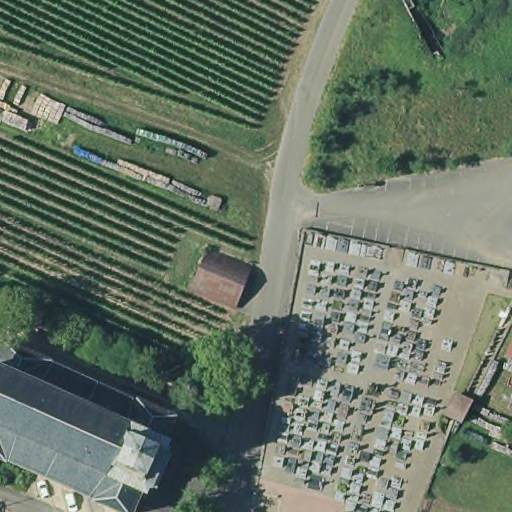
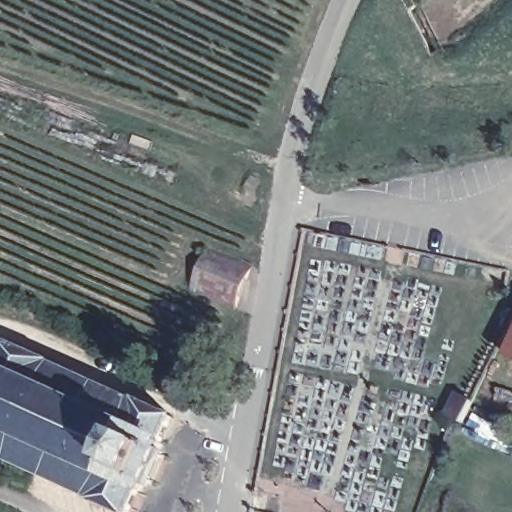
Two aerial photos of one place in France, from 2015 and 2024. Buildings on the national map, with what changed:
unchanged [(193,290),(207,252),(253,270),(239,306),(193,290)]
unchanged [(512,341),(512,357),(506,354),(512,341)]
unchanged [(48,368),(136,407),(136,406),(173,421),(161,447),(163,448),(163,449),(161,455),(163,456),(162,458),(166,460),(153,490),(148,488),(148,491),(145,490),(143,496),(139,494),(132,512),(107,512),(92,505),(93,504),(4,463),(4,464),(0,463),(0,346),(48,367),(48,368)]
unchanged [(447,414),(457,393),(473,401),(463,422),(455,419),(447,414)]

